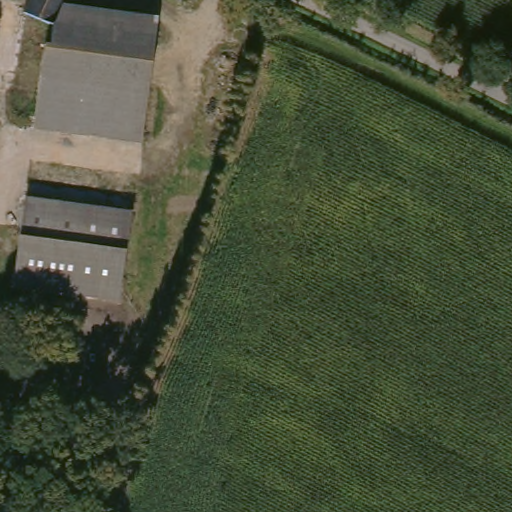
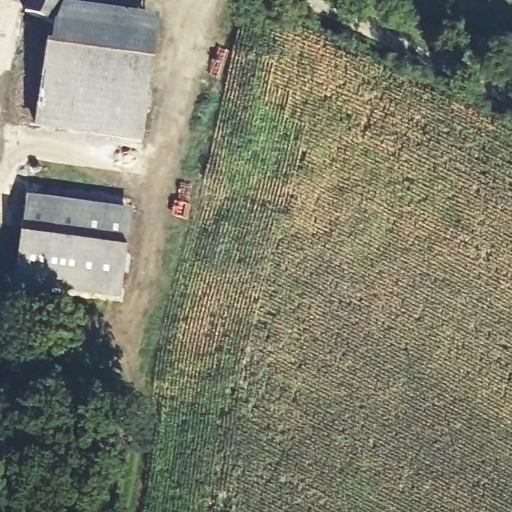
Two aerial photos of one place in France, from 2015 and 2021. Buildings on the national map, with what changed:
unchanged [(15,115),(17,100),(30,6),(32,0),(67,0),(57,21),(56,39),(52,39),(40,118),(15,115)]
unchanged [(56,39),(57,21),(67,0),(71,0),(162,12),(146,133),(40,118),(52,39),(56,39)]
unchanged [(25,197),(131,212),(125,251),(20,236),(25,197)]
unchanged [(125,251),(118,300),(13,285),(20,236),(125,251)]

